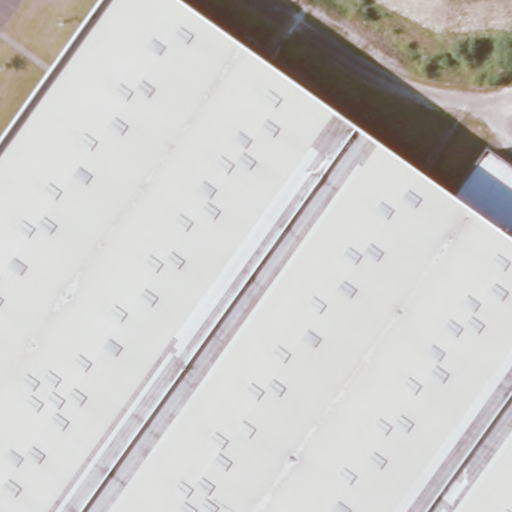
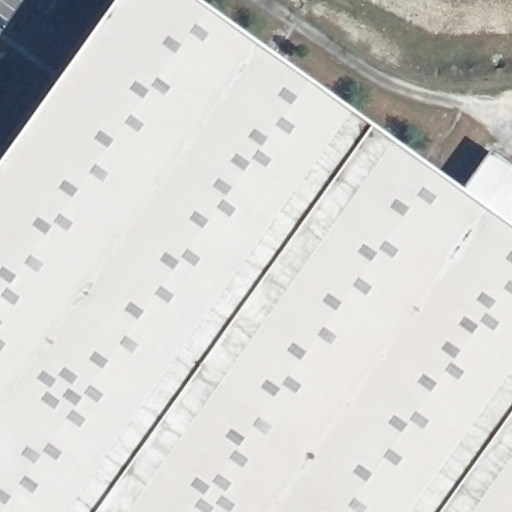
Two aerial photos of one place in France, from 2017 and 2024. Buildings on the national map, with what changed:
unchanged [(487,157),(512,175),(512,512),(0,512),(0,154),(110,0),(174,0),(454,202),(487,157)]

